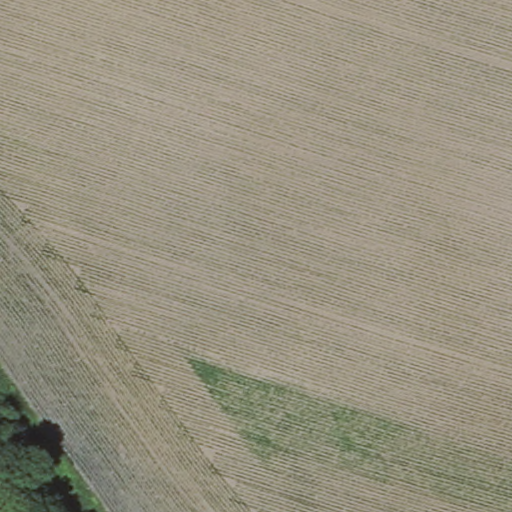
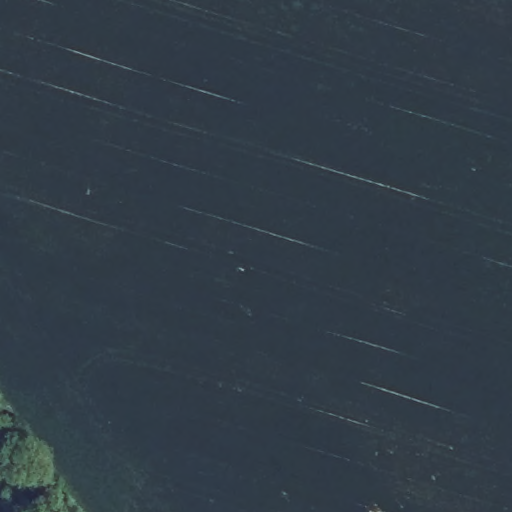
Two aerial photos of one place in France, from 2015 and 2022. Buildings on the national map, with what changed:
[]

